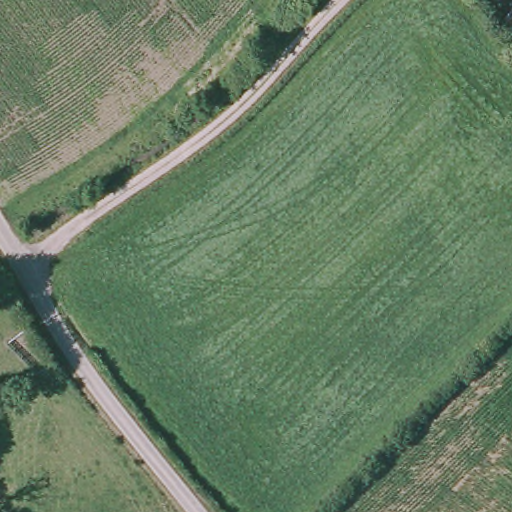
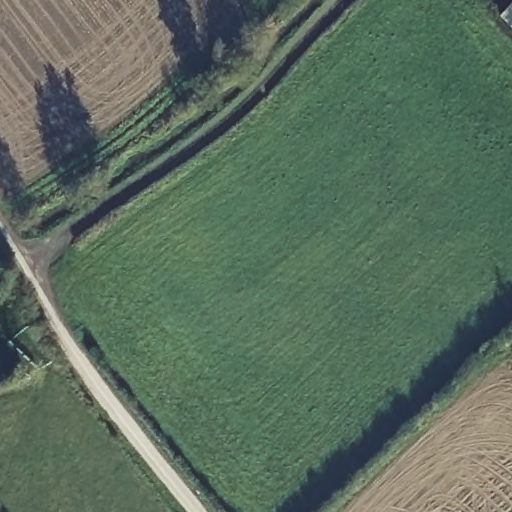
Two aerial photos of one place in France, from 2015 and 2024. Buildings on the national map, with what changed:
unchanged [(512,28),(512,31),(510,30),(512,28)]

